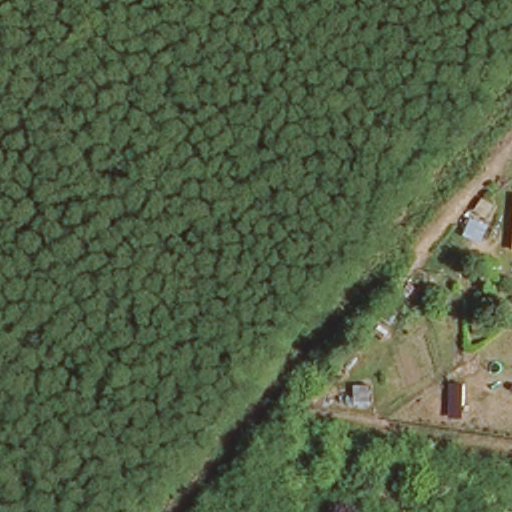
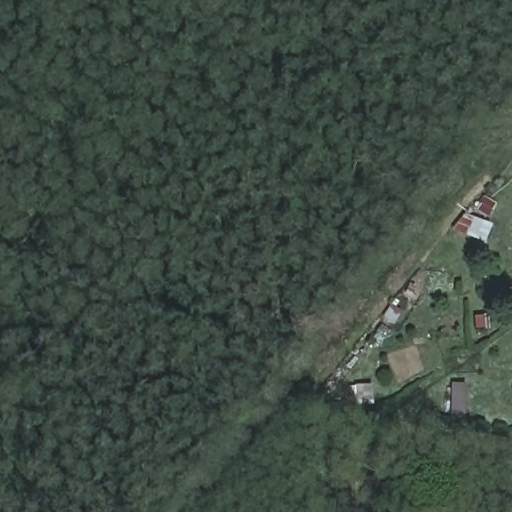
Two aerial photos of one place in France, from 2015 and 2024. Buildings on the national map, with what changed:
unchanged [(488,196),(480,207),(468,199),(471,195),(477,187),(488,196)]
unchanged [(484,215),(479,230),(449,218),(460,205),(484,215)]

